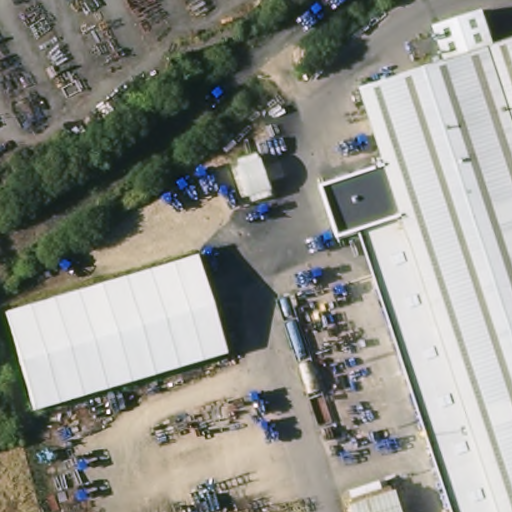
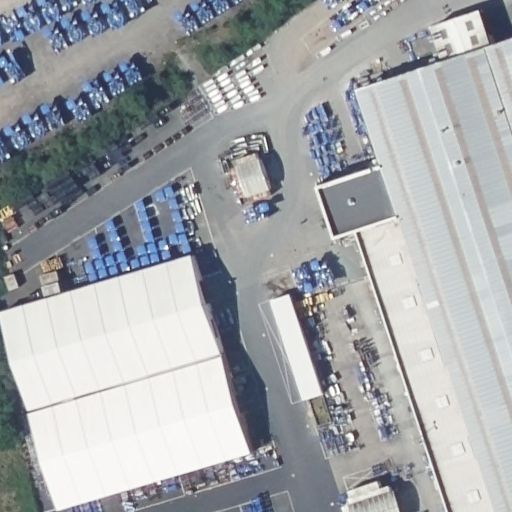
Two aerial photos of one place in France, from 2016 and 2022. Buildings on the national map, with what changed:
unchanged [(495,45),(447,61),(435,25),(483,10),(495,45)]
unchanged [(363,89),(447,61),(495,45),(512,39),(512,512),(503,512),(363,89)]
unchanged [(275,195),(254,202),(250,195),(242,198),(231,169),(240,167),(236,160),(259,152),(275,195)]
unchanged [(361,231),(342,236),(325,187),(388,166),(503,512),(455,512),(361,231)]
unchanged [(0,309),(195,252),(225,352),(29,408),(0,314),(0,309)]
new [(256,452),(62,509),(31,407),(225,352),(256,452)]
unchanged [(401,512),(349,512),(346,502),(354,500),(352,493),(391,481),(401,512)]

